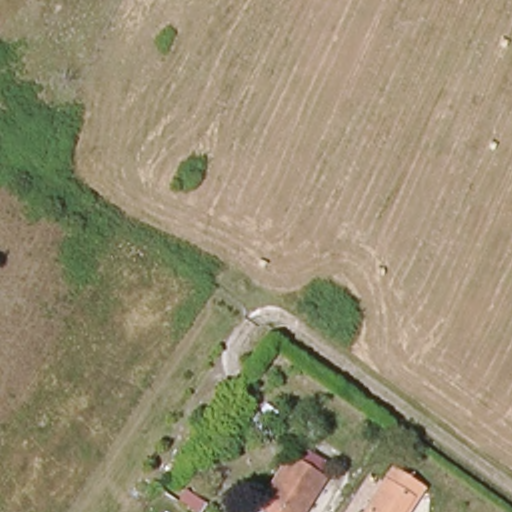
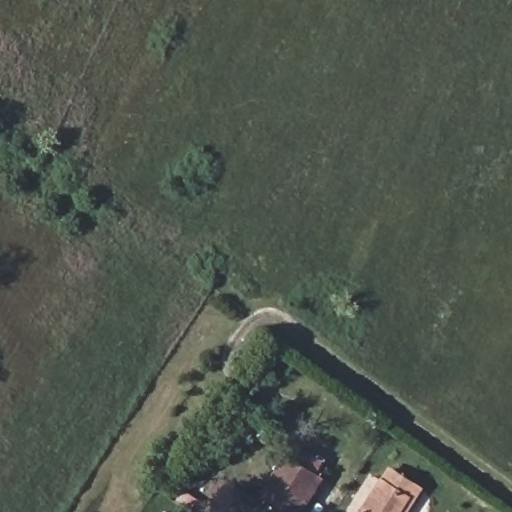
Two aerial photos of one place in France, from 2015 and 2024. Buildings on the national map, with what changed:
unchanged [(259,512),(254,508),(286,452),(298,460),(306,449),(326,460),(317,474),(303,493),(313,502),(308,512),(259,512)]
unchanged [(410,478),(424,489),(408,512),(367,512),(397,469),(410,478)]

